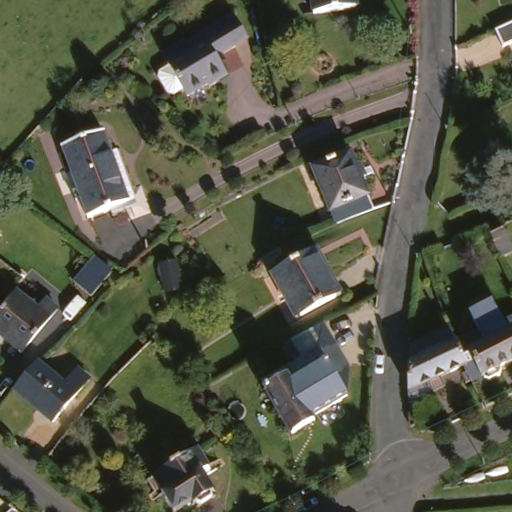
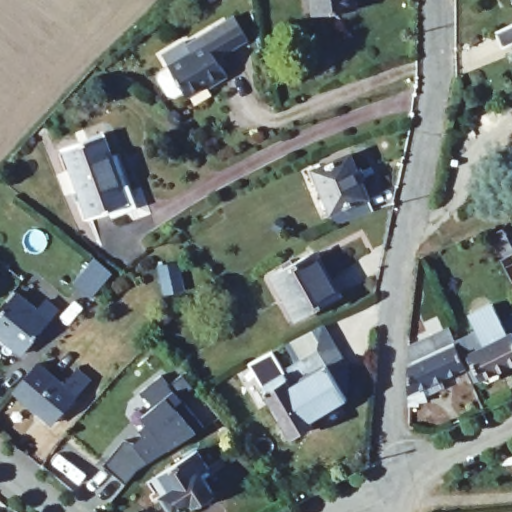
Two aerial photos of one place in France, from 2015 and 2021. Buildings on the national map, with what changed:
unchanged [(369,2),(325,9),(323,0),(369,0),(369,2)]
unchanged [(180,87),(171,72),(173,67),(180,62),(178,59),(201,46),(196,37),(231,17),(245,41),(230,50),(229,56),(237,70),(219,80),(217,78),(196,90),(193,84),(185,89),(180,87)]
unchanged [(498,32),(512,26),(512,45),(505,48),(498,32)]
unchanged [(133,199),(116,204),(90,213),(90,211),(66,142),(109,129),(117,151),(127,183),(133,199)]
unchanged [(379,200),(342,214),(319,158),(340,150),(355,144),(379,200)]
unchanged [(512,246),(512,256),(502,260),(491,237),(505,230),(512,246)]
unchanged [(283,272),(295,266),(291,261),(302,255),(305,261),(325,249),(349,294),(306,317),(283,272)]
unchanged [(93,298),(76,283),(98,259),(114,274),(93,298)]
unchanged [(19,296),(38,312),(47,302),(59,311),(23,355),(0,336),(0,319),(19,296)]
unchanged [(496,301),(503,315),(506,322),(512,319),(512,361),(502,365),(505,370),(502,374),(489,379),(486,379),(484,375),(481,376),(474,380),(473,376),(469,368),(466,362),(463,354),(460,347),(456,339),(480,328),(473,311),(496,301)]
unchanged [(428,392),(428,396),(420,396),(420,402),(410,401),(411,339),(449,324),(456,339),(460,347),(463,354),(466,362),(448,370),(453,381),(428,392)]
unchanged [(339,353),(352,376),(340,389),(349,404),(312,424),(315,429),(294,441),(265,391),(286,379),(283,375),(321,354),(322,356),(339,353)]
unchanged [(44,360),(69,381),(84,365),(96,375),(58,419),(21,388),(44,360)]
new [(119,448),(131,451),(132,443),(143,434),(139,429),(152,418),(155,406),(143,391),(163,375),(171,385),(185,374),(195,388),(182,398),(206,430),(139,471),(121,493),(98,474),(119,448)]
unchanged [(226,443),(219,435),(228,428),(234,436),(226,443)]
unchanged [(209,447),(221,465),(213,470),(224,491),(222,492),(224,496),(207,506),(204,501),(200,504),(199,502),(183,511),(171,492),(173,491),(164,475),(209,447)]

